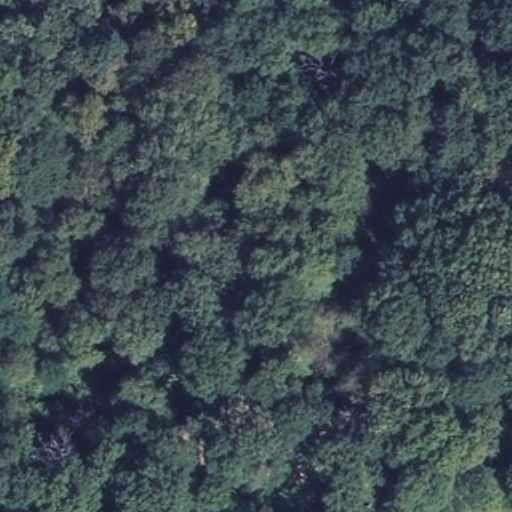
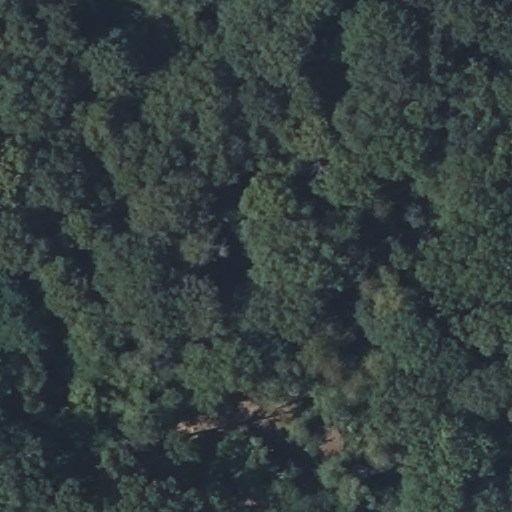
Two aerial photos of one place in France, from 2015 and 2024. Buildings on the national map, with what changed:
unchanged [(329,475),(295,490),(284,464),(314,448),(329,475)]

